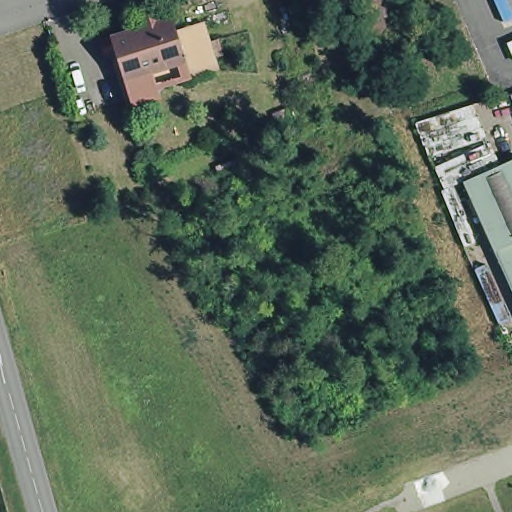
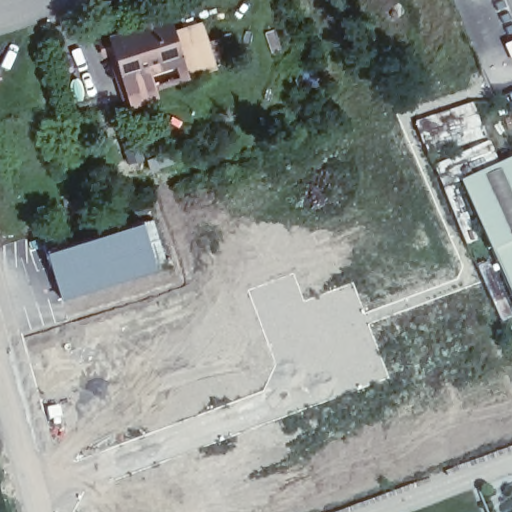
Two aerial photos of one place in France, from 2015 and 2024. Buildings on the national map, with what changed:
unchanged [(399,0),(419,37),(381,61),(358,0),(399,0)]
unchanged [(182,59),(124,77),(112,36),(170,17),(175,32),(182,59)]
unchanged [(202,24),(215,69),(190,78),(189,77),(182,59),(175,32),(202,24)]
unchanged [(512,38),(512,59),(504,41),(512,38)]
unchanged [(130,96),(124,77),(182,59),(189,77),(130,96)]
new [(509,96),(512,94),(512,104),(509,96)]
unchanged [(512,152),(512,285),(464,173),(512,152)]
new [(60,298),(44,250),(143,219),(157,267),(60,298)]

